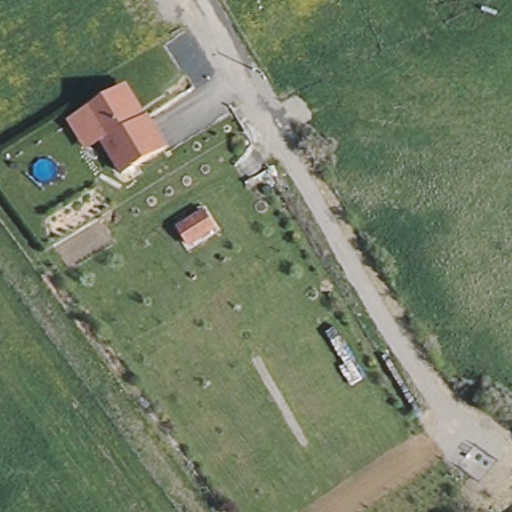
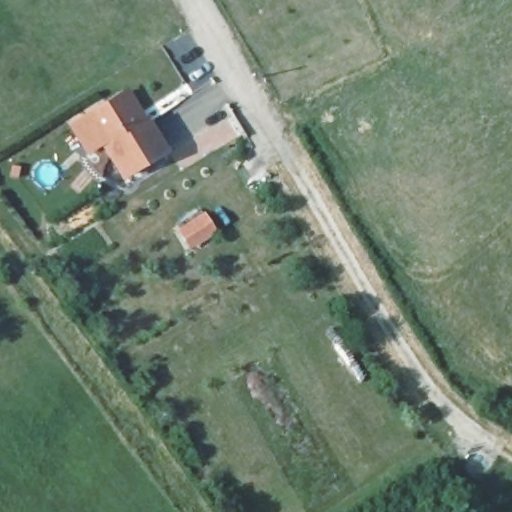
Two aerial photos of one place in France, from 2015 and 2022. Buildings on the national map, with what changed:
unchanged [(85,119),(123,95),(144,128),(148,124),(165,153),(123,179),(102,145),(87,155),(70,128),(85,119)]

